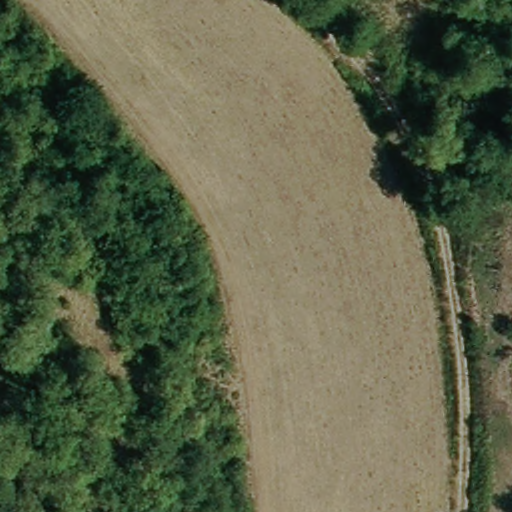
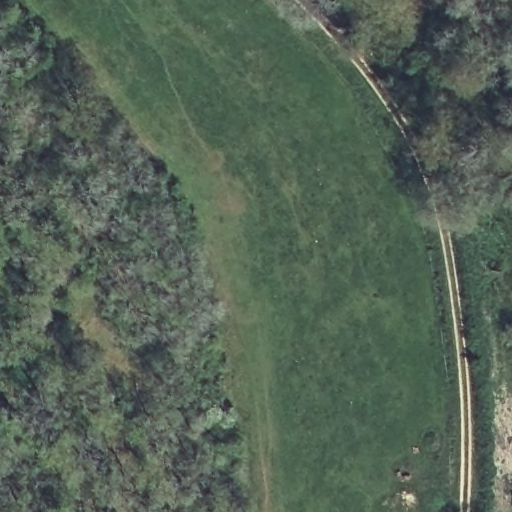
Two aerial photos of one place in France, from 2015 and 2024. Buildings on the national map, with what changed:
[]

